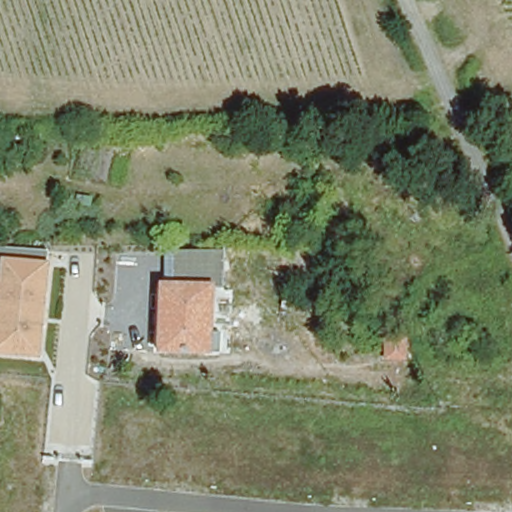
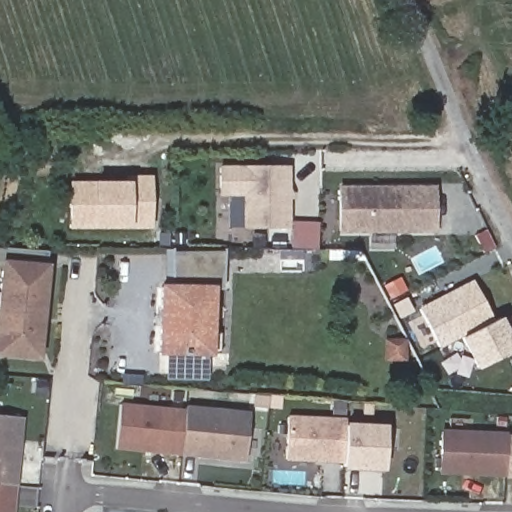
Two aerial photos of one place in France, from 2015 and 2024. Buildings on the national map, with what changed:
new [(292,169),(292,229),(249,229),(249,195),(225,195),(224,169),(292,169)]
new [(71,182),(130,182),(130,176),(152,176),(152,223),(71,223),(71,182)]
new [(442,231),(347,230),(348,187),(442,188),(442,231)]
unchanged [(171,250),(230,250),(229,285),(221,286),(170,284),(171,250)]
unchanged [(0,356),(0,274),(1,259),(51,264),(40,359),(0,356)]
new [(501,317),(512,338),(512,351),(476,369),(460,338),(440,348),(419,307),(472,280),(493,320),(501,317)]
unchanged [(170,284),(221,286),(219,357),(164,355),(166,284),(170,284)]
new [(407,340),(408,360),(391,361),(391,340),(407,340)]
new [(218,377),(164,375),(164,355),(219,357),(218,377)]
new [(249,458),(185,452),(189,413),(190,405),(254,410),(249,458)]
new [(185,452),(185,456),(120,450),(124,407),(189,413),(185,452)]
new [(345,460),(287,457),(288,415),(346,418),(345,460)]
new [(0,485),(0,416),(26,418),(20,486),(0,485)]
new [(390,468),(352,466),(354,426),(392,428),(390,468)]
new [(443,431),(507,434),(507,437),(505,475),(441,472),(443,431)]
new [(505,475),(507,437),(512,438),(512,478),(505,477),(505,475)]
new [(0,512),(0,485),(20,486),(18,512),(0,512)]

